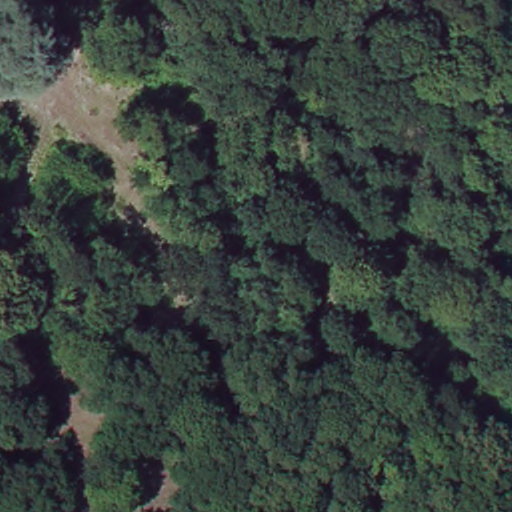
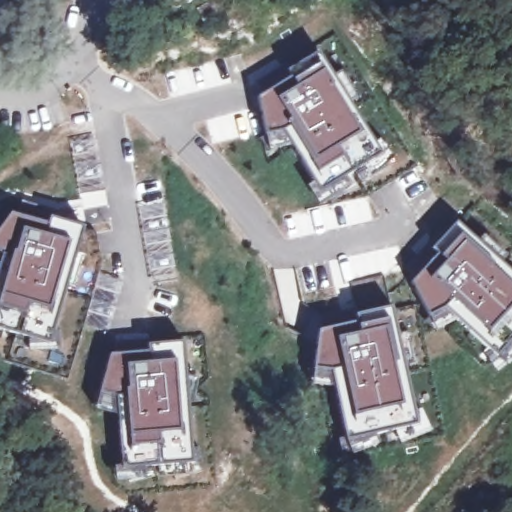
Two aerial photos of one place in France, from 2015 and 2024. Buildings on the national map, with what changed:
unchanged [(208,0),(216,13),(203,21),(195,8),(208,0)]
new [(321,13),(414,164),(366,195),(324,204),(318,192),(279,130),(264,132),(256,98),(263,94),(254,80),(241,62),(321,13)]
new [(163,74),(207,55),(219,83),(174,102),(163,74)]
new [(39,236),(46,218),(94,232),(99,264),(65,378),(0,360),(0,258),(1,253),(15,230),(39,236)]
new [(455,223),(479,243),(492,261),(512,278),(512,336),(494,356),(449,315),(434,330),(424,321),(428,315),(408,279),(455,223)]
new [(354,308),(355,315),(388,308),(394,341),(391,367),(401,366),(414,423),(344,439),(328,370),(313,368),(321,316),(354,308)]
new [(117,353),(116,342),(148,338),(148,345),(181,342),(183,377),(175,402),(184,401),(188,461),(121,466),(115,395),(99,390),(109,355),(117,353)]

